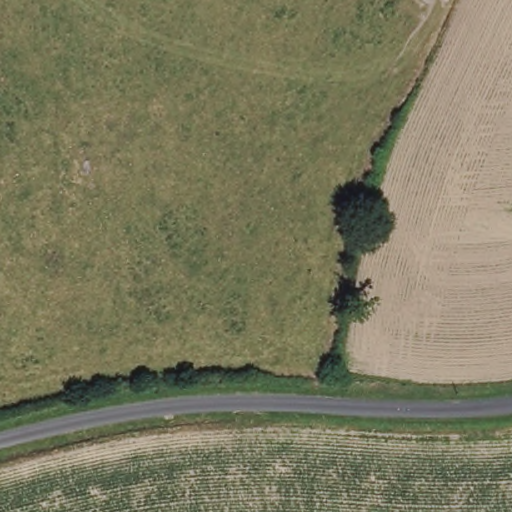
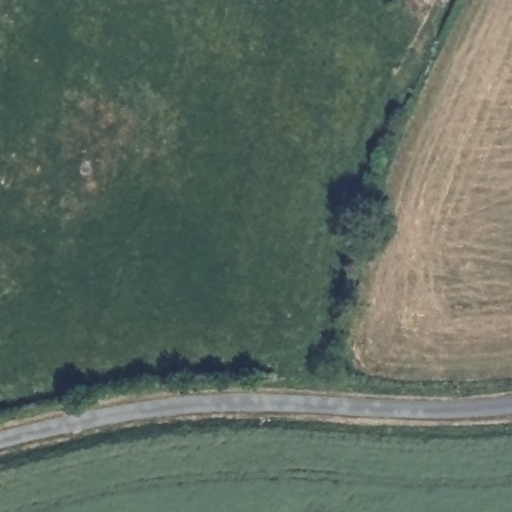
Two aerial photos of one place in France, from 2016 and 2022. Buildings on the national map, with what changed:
unchanged [(278,352),(277,363),(263,363),(263,351),(278,352)]

